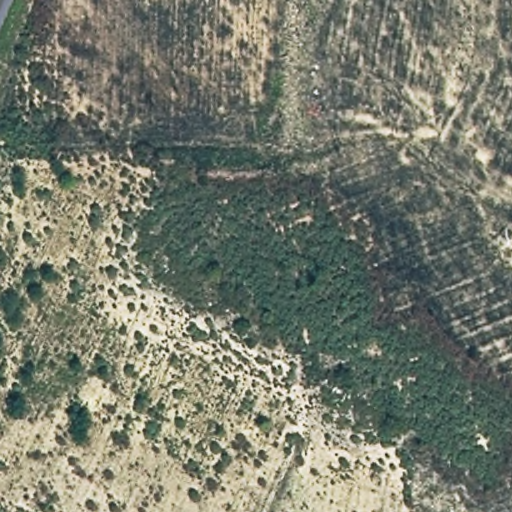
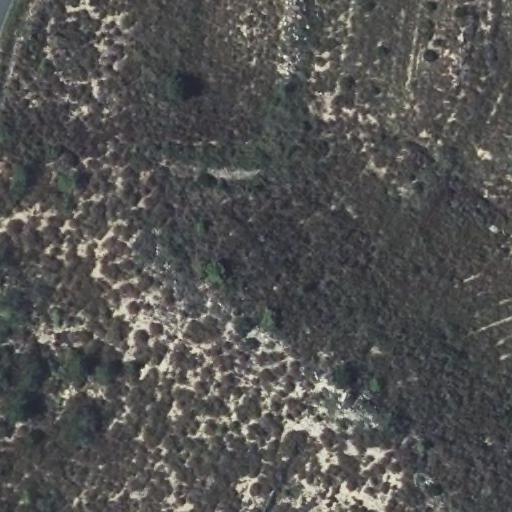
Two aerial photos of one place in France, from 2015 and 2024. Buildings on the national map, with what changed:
unchanged [(330,103),(331,118),(310,114),(311,98),(330,103)]

